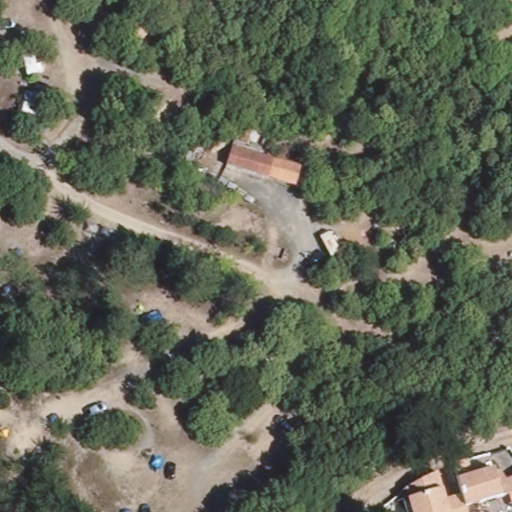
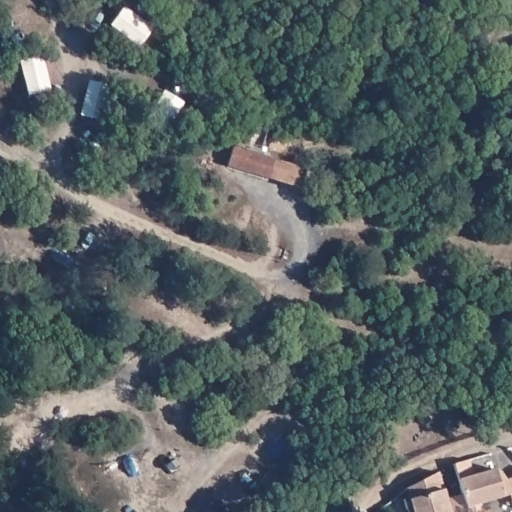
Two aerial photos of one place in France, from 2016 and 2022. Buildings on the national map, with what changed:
unchanged [(297,186),(228,166),(234,147),(239,129),(253,134),(248,151),(304,166),(297,186)]
unchanged [(455,462),(472,458),(475,470),(495,465),(499,468),(503,467),(507,477),(512,475),(512,500),(508,491),(485,500),(487,510),(492,509),(493,512),(468,512),(462,493),(455,462)]
unchanged [(445,487),(448,497),(462,493),(468,512),(414,512),(410,499),(415,497),(411,485),(440,473),(445,487)]

